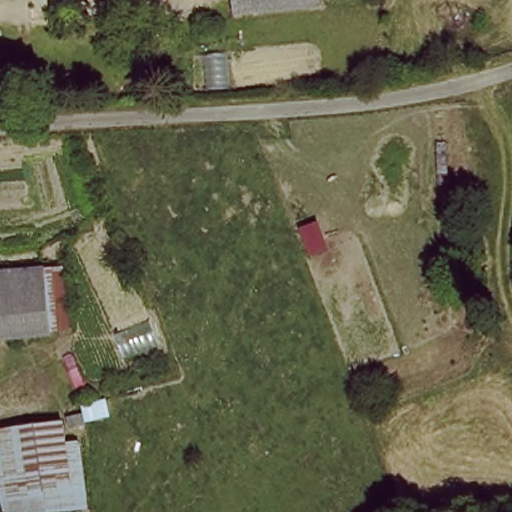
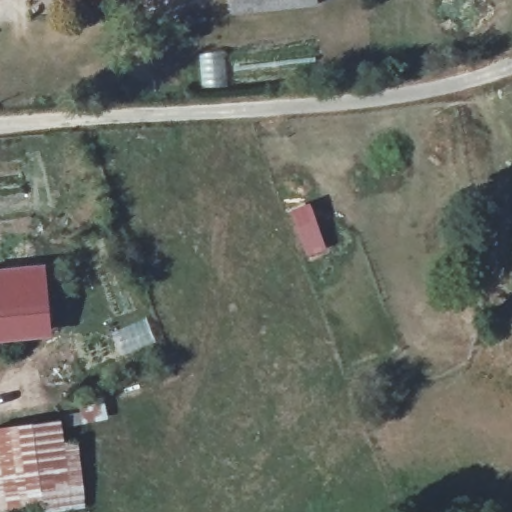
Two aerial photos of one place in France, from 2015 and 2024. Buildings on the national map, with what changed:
unchanged [(48,286),(52,332),(0,336),(0,271),(46,268),(48,286)]
unchanged [(64,445),(81,446),(86,507),(2,512),(0,498),(0,429),(58,421),(64,445)]

